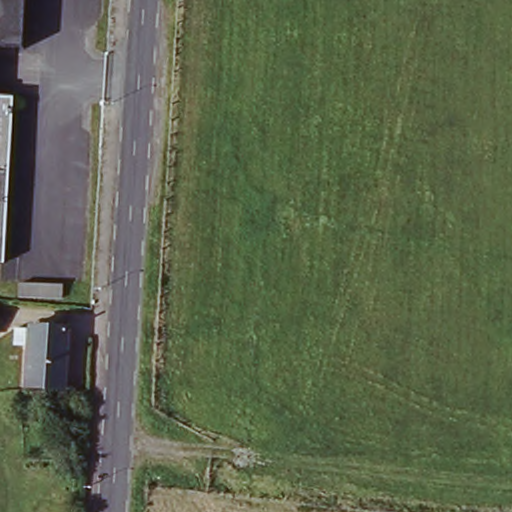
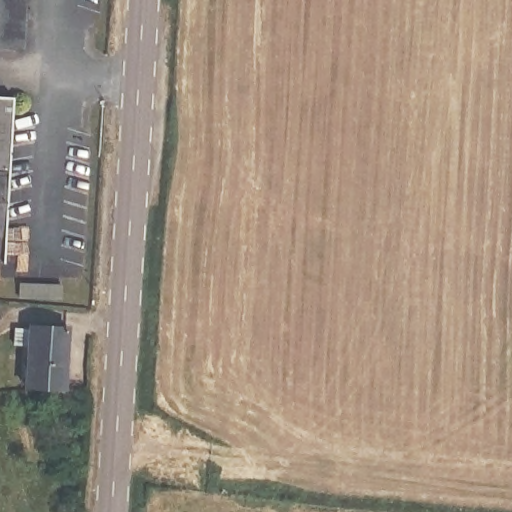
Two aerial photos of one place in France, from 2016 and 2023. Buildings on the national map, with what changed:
unchanged [(20,0),(17,33),(0,32),(0,0),(20,0)]
unchanged [(10,83),(1,238),(0,238),(0,81),(10,83)]
unchanged [(1,238),(1,262),(0,262),(0,238),(1,238)]
unchanged [(11,287),(52,289),(51,303),(10,300),(11,287)]
unchanged [(27,328),(65,329),(61,388),(25,385),(27,328)]

